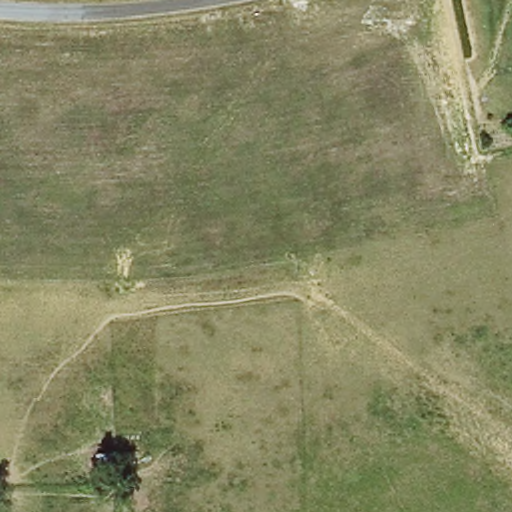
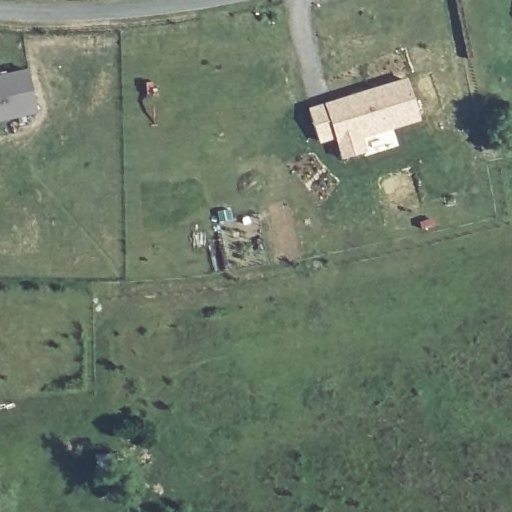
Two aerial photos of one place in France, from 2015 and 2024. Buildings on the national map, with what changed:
new [(42,106),(0,118),(0,73),(30,65),(42,106)]
new [(424,116),(366,139),(372,154),(351,162),(343,138),(326,145),(314,115),(411,79),(424,116)]

